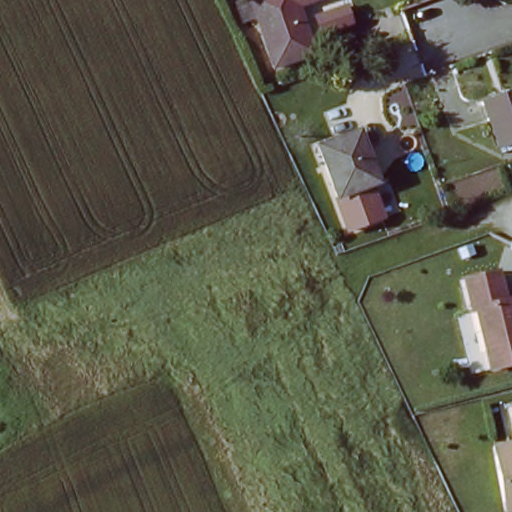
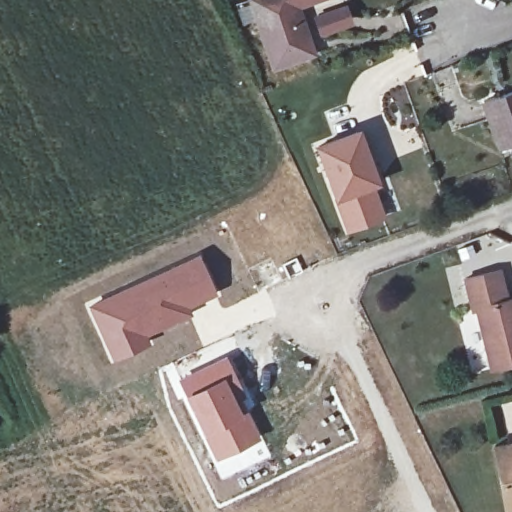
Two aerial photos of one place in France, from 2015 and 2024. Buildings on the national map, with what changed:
unchanged [(242,0),(305,0),(296,4),(315,57),(267,70),(242,0)]
unchanged [(495,149),(477,101),(512,88),(512,143),(495,149)]
unchanged [(354,138),(371,183),(333,197),(316,152),(354,138)]
new [(200,252),(217,292),(190,307),(192,313),(147,335),(150,340),(112,358),(86,303),(200,252)]
unchanged [(477,309),(472,310),(464,280),(499,271),(506,298),(512,297),(512,364),(493,368),(477,309)]
new [(227,355),(253,405),(247,408),(261,438),(240,450),(248,465),(222,478),(177,379),(227,355)]
unchanged [(505,512),(489,450),(512,445),(512,511),(509,512),(505,512)]

